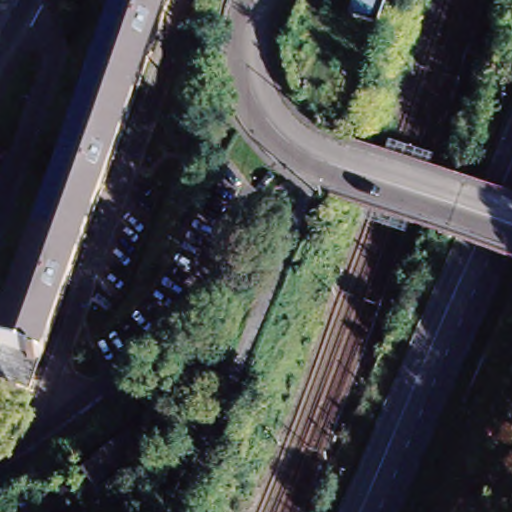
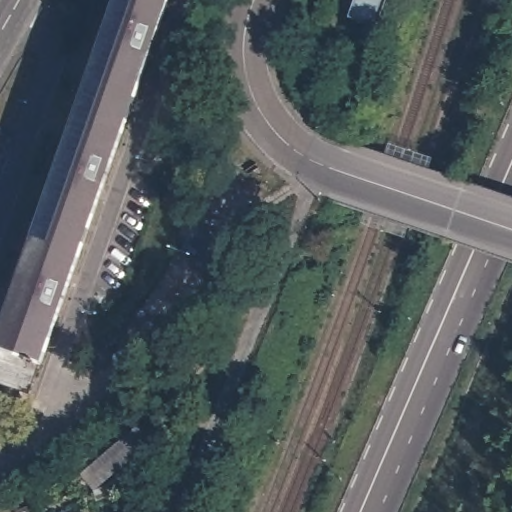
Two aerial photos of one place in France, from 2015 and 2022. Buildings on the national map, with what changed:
unchanged [(0,350),(0,338),(121,0),(168,0),(41,365),(6,352),(0,350)]
unchanged [(384,2),(374,31),(346,21),(353,0),(391,0),(390,4),(384,2)]
unchanged [(0,382),(0,368),(6,352),(41,365),(32,393),(0,382)]
unchanged [(150,445),(95,495),(80,480),(137,431),(150,445)]

